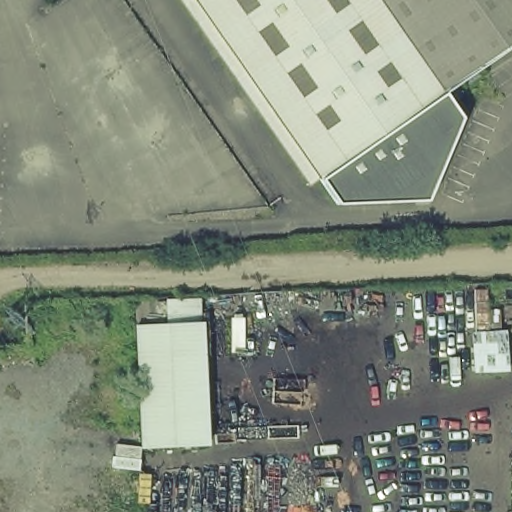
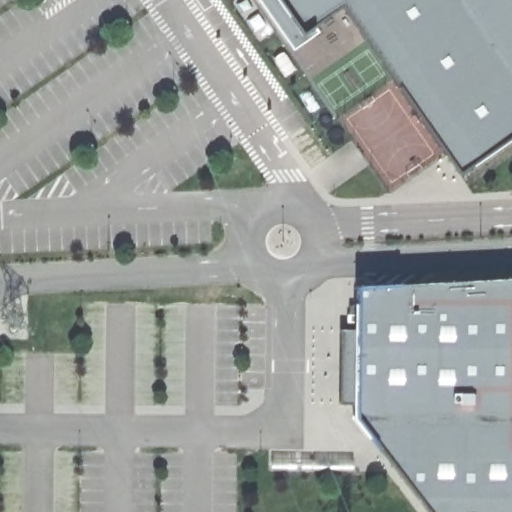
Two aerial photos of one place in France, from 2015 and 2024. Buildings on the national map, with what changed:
demolished [(512,0),(512,47),(442,95),(469,112),(435,204),(347,208),(325,175),(308,186),(179,0),(512,0)]
new [(257,0),(323,0),(272,22),(257,0)]
new [(368,0),(374,36),(365,40),(342,7),(301,35),(304,41),(292,49),(272,22),(323,0),(368,0)]
new [(368,0),(385,0),(398,19),(404,96),(365,40),(374,36),(368,0)]
new [(385,0),(397,0),(398,19),(385,0)]
new [(414,110),(404,96),(398,19),(397,0),(487,0),(484,108),(460,109),(490,151),(459,173),(414,110)]
new [(500,0),(499,108),(484,108),(487,0),(500,0)]
new [(512,0),(512,108),(499,108),(500,0),(512,0)]
new [(499,108),(512,108),(512,136),(490,151),(460,109),(484,108),(499,108)]
new [(354,329),(356,285),(395,283),(512,278),(512,512),(427,512),(355,418),(355,404),(340,404),(340,330),(354,329)]
demolished [(205,319),(212,443),(141,447),(135,324),(205,319)]
new [(354,458),(354,470),(272,470),(272,458),(354,458)]

